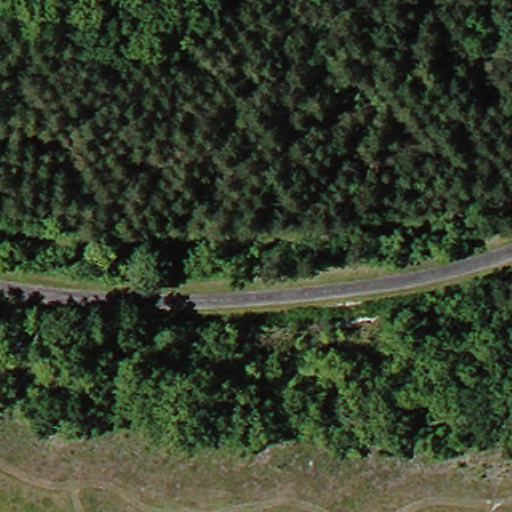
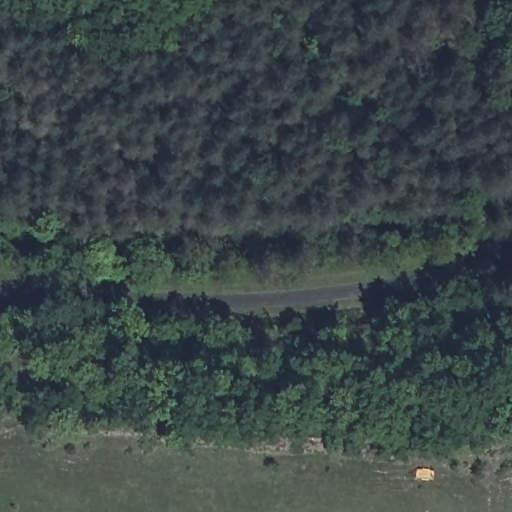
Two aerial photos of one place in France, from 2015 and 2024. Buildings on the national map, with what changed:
[]

